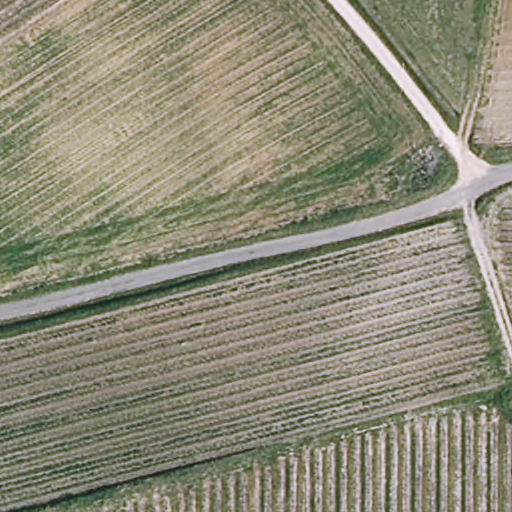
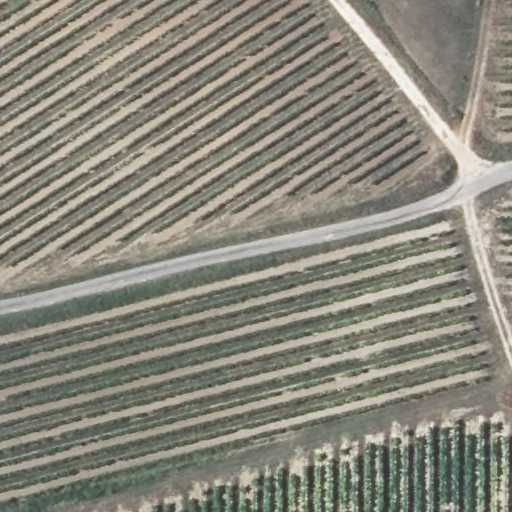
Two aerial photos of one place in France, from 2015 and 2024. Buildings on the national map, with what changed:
[]

